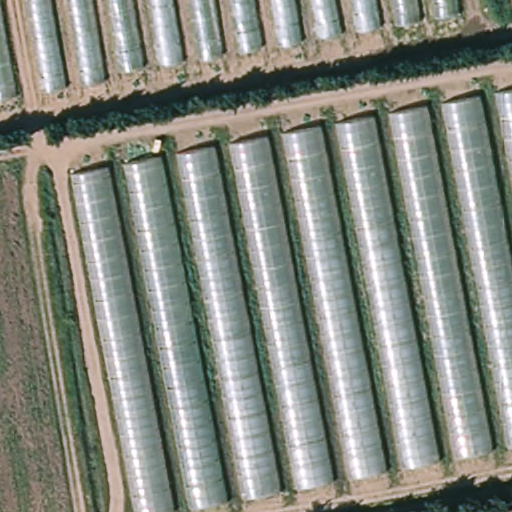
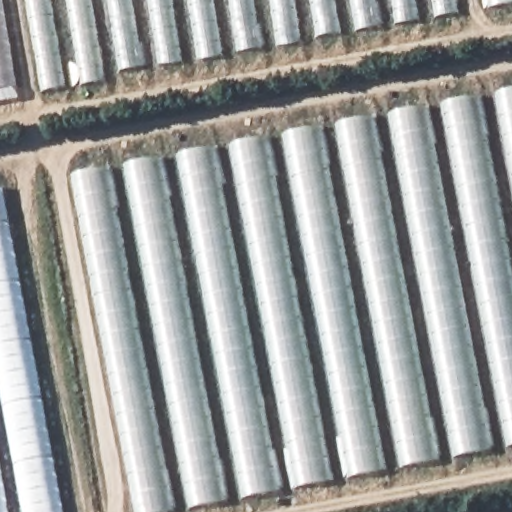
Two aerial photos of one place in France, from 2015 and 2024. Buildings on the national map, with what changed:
unchanged [(0,97),(0,0),(459,0),(461,14),(0,97)]
new [(512,0),(512,5),(489,9),(487,0),(512,0)]
unchanged [(161,512),(134,512),(70,172),(512,87),(512,446),(161,512)]
new [(65,512),(0,512),(0,190),(5,189),(65,512)]

